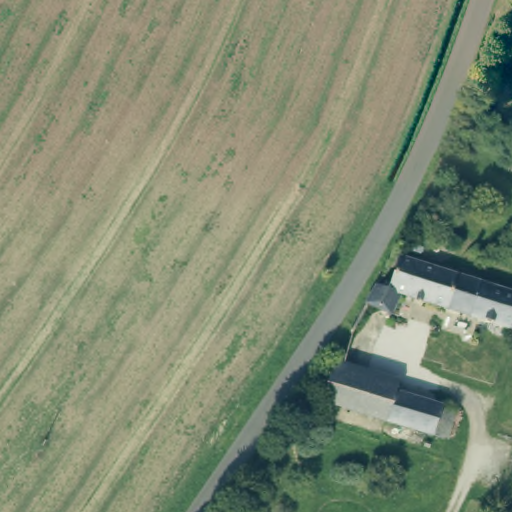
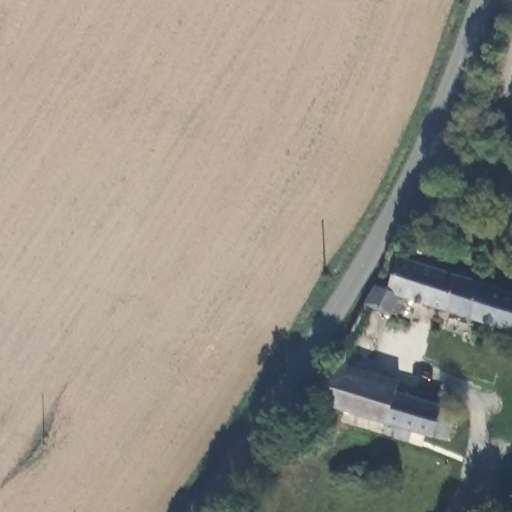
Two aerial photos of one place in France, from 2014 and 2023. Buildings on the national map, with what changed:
unchanged [(419,235),(421,236),(423,237),(425,240),(426,242),(427,245),(425,251),(422,254),(420,255),(417,255),(415,255),(412,255),(410,254),(408,251),(407,250),(406,247),(406,245),(406,242),(407,240),(409,237),(411,236),(414,235),(416,235),(419,235)]
unchanged [(388,290),(399,257),(512,294),(512,330),(401,295),(391,315),(366,303),(376,285),(388,290)]
unchanged [(446,440),(432,435),(321,402),(338,362),(399,380),(396,392),(441,406),(440,408),(455,413),(446,440)]

